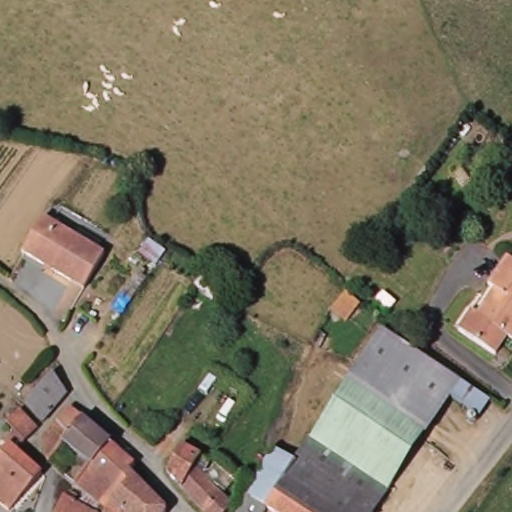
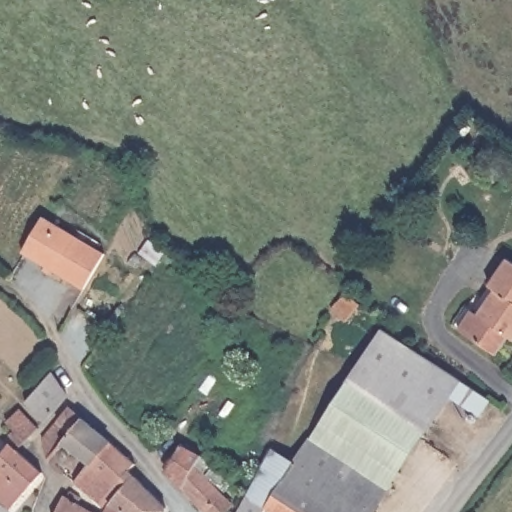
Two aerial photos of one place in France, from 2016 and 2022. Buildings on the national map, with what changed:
unchanged [(24,250),(45,215),(79,234),(57,270),(24,250)]
unchanged [(57,270),(79,234),(108,250),(86,286),(57,270)]
unchanged [(509,339),(496,357),(460,332),(473,313),(479,317),(497,293),(490,288),(509,261),(512,263),(512,342),(509,339)]
unchanged [(361,301),(362,303),(349,318),(334,306),(349,290),(361,301)]
unchanged [(490,402),(479,419),(452,401),(426,437),(348,385),(382,332),(490,402)]
unchanged [(54,374),(70,396),(46,425),(27,404),(37,394),(54,374)]
unchanged [(312,440),(348,385),(426,437),(390,493),(312,440)]
unchanged [(169,512),(59,512),(66,497),(71,500),(79,487),(78,486),(93,467),(64,445),(49,461),(44,440),(59,423),(71,408),(113,443),(112,445),(136,466),(130,473),(139,480),(170,510),(169,512)]
unchanged [(23,500),(10,512),(9,512),(0,504),(0,462),(10,449),(9,446),(8,442),(9,437),(12,434),(14,434),(19,433),(9,423),(21,410),(40,430),(28,442),(19,452),(45,475),(23,500)]
unchanged [(147,432),(154,436),(159,439),(151,450),(140,441),(147,432)]
unchanged [(268,510),(266,512),(240,512),(247,499),(260,475),(274,451),(295,464),(312,440),(390,493),(377,512),(271,512),(268,510)]
unchanged [(169,473),(183,447),(201,457),(195,467),(235,506),(230,512),(204,512),(169,473)]

